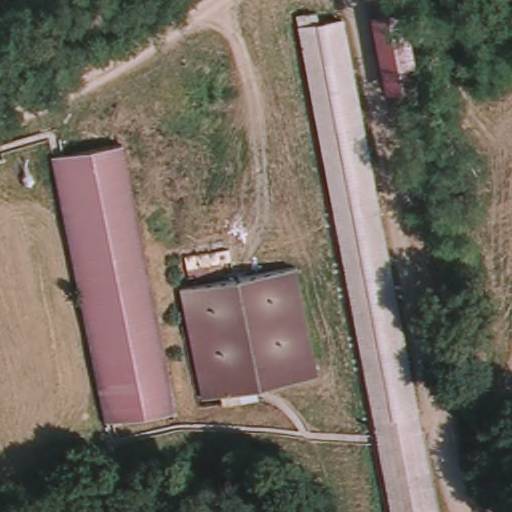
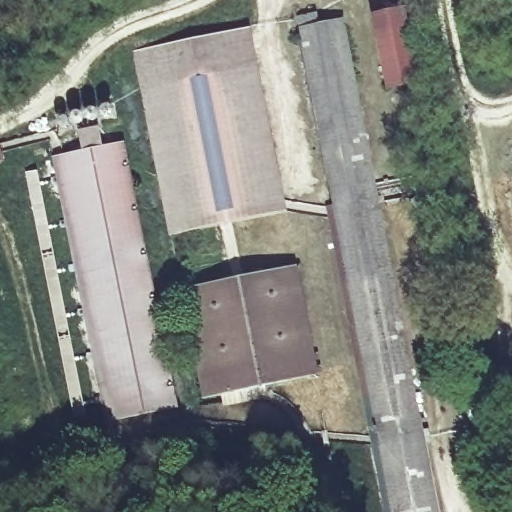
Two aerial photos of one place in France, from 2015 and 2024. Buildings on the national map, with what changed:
unchanged [(416,85),(382,91),(369,13),(402,8),(416,85)]
new [(169,235),(132,49),(250,28),(286,211),(169,235)]
unchanged [(392,512),(302,33),(320,29),(322,37),(351,32),(440,512),(392,512)]
unchanged [(170,407),(110,419),(57,156),(119,144),(170,407)]
unchanged [(208,398),(187,288),(302,267),(323,374),(208,398)]

